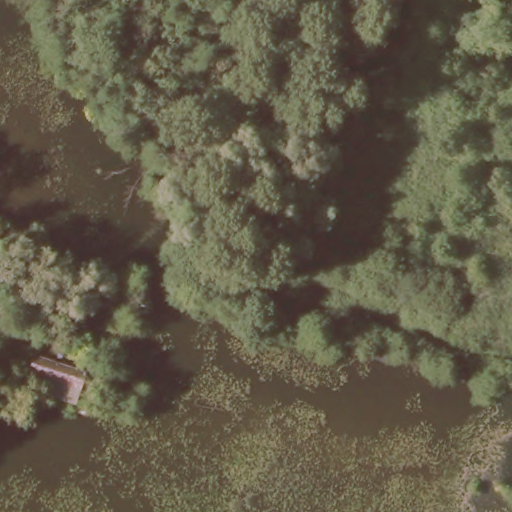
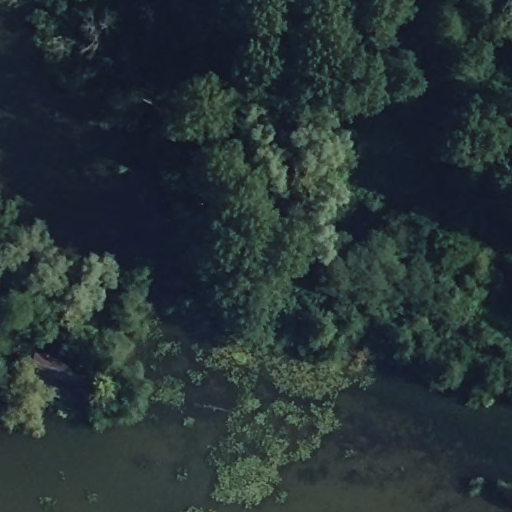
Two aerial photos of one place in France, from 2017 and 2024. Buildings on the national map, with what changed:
unchanged [(35,355),(86,371),(81,386),(31,371),(35,355)]

